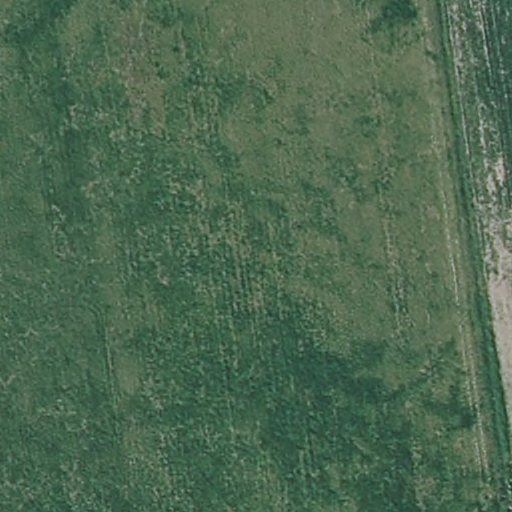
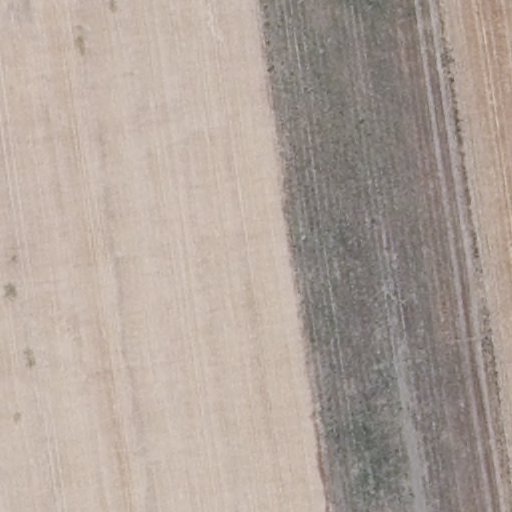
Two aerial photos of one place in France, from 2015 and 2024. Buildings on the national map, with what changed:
[]

